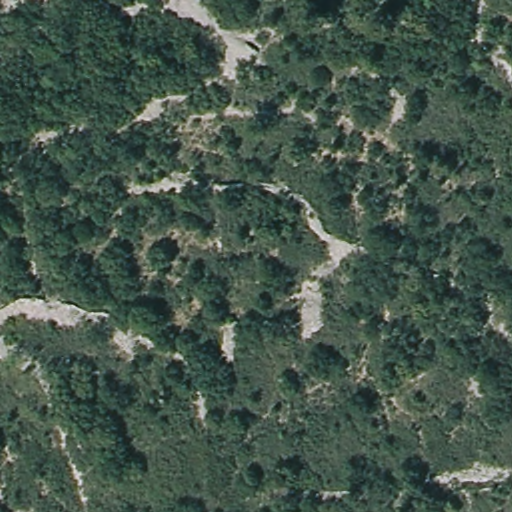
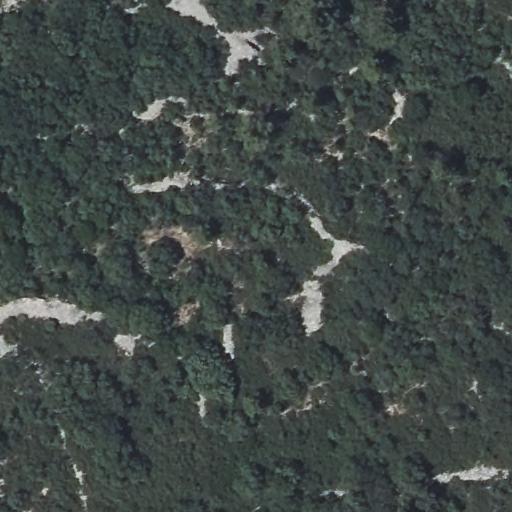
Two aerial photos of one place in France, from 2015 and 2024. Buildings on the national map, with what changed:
[]

